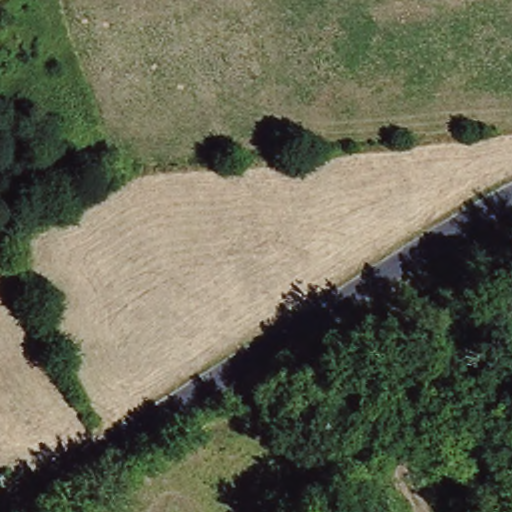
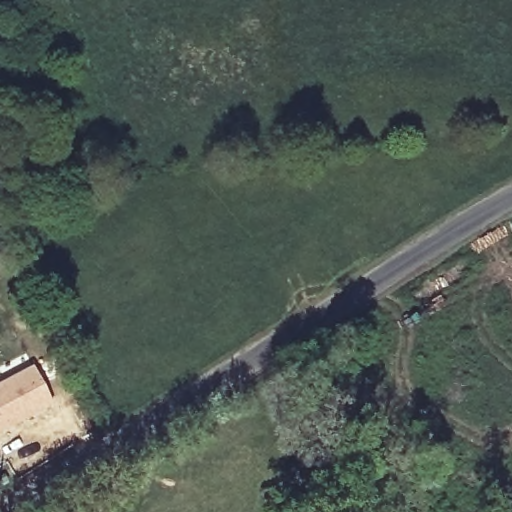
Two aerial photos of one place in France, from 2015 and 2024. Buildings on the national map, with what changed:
new [(0,431),(0,383),(32,367),(54,407),(0,431)]

